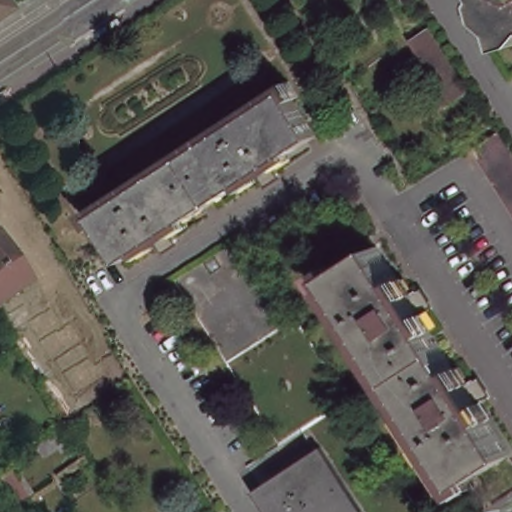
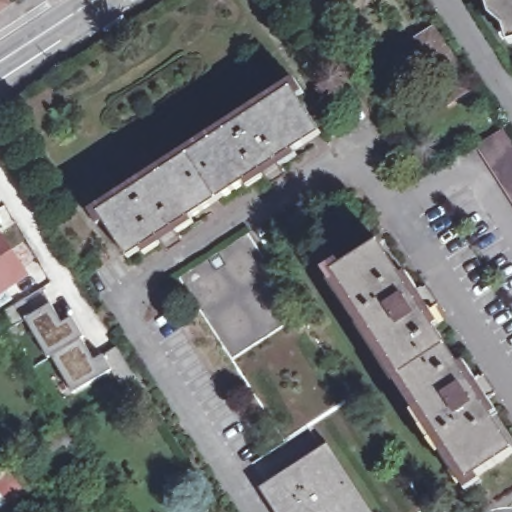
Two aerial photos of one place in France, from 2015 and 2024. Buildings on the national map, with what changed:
unchanged [(0,2),(0,0),(2,0),(0,2)]
unchanged [(512,34),(489,0),(512,0),(512,34)]
unchanged [(436,28),(478,95),(455,110),(422,61),(433,54),(422,36),(436,28)]
unchanged [(164,244),(160,237),(129,257),(100,214),(292,89),(321,132),(277,161),(282,168),(263,179),(259,172),(177,226),(182,232),(164,244)]
unchanged [(482,150),(507,134),(509,137),(512,142),(512,198),(483,153),(482,150)]
unchanged [(285,440),(177,276),(247,231),(427,508),(421,512),(366,512),(327,452),(309,425),(285,440)]
unchanged [(3,241),(28,280),(10,293),(7,288),(0,293),(0,243),(3,241)]
unchanged [(490,411),(512,446),(512,466),(475,490),(340,281),(385,252),(418,302),(427,296),(440,315),(430,322),(477,392),(487,385),(500,405),(490,411)]
new [(82,339),(50,357),(48,359),(25,320),(7,331),(0,320),(0,314),(25,299),(33,313),(50,304),(61,324),(72,318),(84,337),(82,339)]
new [(135,378),(120,387),(109,371),(72,393),(50,357),(82,339),(93,360),(102,356),(116,348),(135,378)]
unchanged [(42,442),(57,431),(72,422),(82,439),(68,448),(66,445),(50,455),(42,442)]
unchanged [(286,512),(270,488),(327,452),(366,512),(286,512)]
unchanged [(10,507),(0,492),(0,471),(8,465),(14,473),(19,470),(33,490),(28,494),(28,495),(10,507)]

